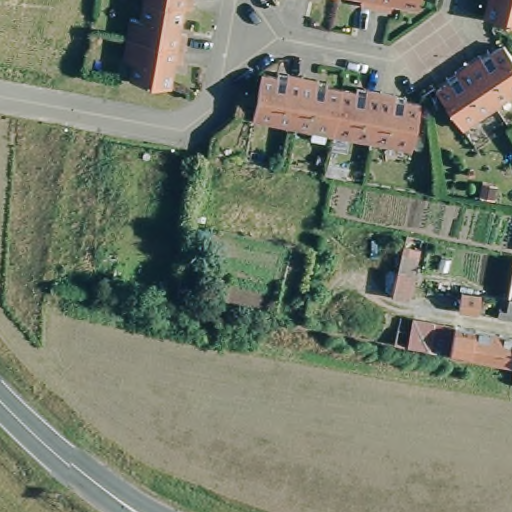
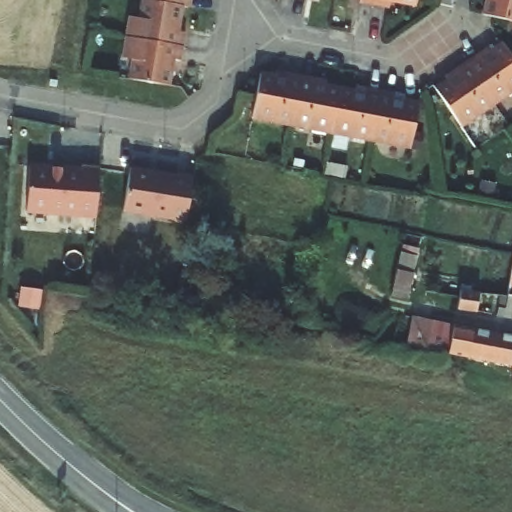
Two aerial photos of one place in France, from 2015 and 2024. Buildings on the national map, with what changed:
unchanged [(157,84),(129,79),(133,59),(123,58),(126,37),(130,17),(140,19),(143,0),(191,0),(189,8),(182,7),(180,20),(178,31),(186,33),(183,47),(181,61),(173,60),(171,71),(169,86),(157,84)]
unchanged [(373,5),(359,2),(359,0),(389,0),(388,7),(373,5)]
unchanged [(400,2),(389,0),(415,0),(414,4),(400,2)]
unchanged [(493,17),(484,15),(487,0),(512,0),(512,22),(493,17)]
unchanged [(448,80),(445,76),(454,70),(466,62),(479,53),(487,48),(489,52),(502,43),(512,58),(512,92),(494,104),(461,126),(436,89),(448,80)]
unchanged [(276,71),(286,73),(301,76),(316,78),(326,80),(325,85),(339,88),(354,91),(356,86),(365,88),(380,90),(394,93),(404,95),(404,100),(419,103),(410,148),(252,118),(261,73),(276,76),(276,71)]
new [(28,163),(79,167),(79,165),(98,169),(94,214),(24,209),(28,163)]
unchanged [(338,165),(336,175),(324,173),(326,163),(338,165)]
new [(128,167),(174,174),(175,173),(191,176),(183,219),(121,208),(128,167)]
unchanged [(417,253),(413,273),(414,273),(408,299),(391,295),(401,249),(417,253)]
unchanged [(496,317),(500,295),(507,295),(512,266),(512,320),(496,317)]
new [(21,290),(39,293),(36,311),(18,308),(21,290)]
unchanged [(479,293),(477,312),(458,309),(460,290),(479,293)]
unchanged [(449,353),(429,350),(407,345),(395,343),(398,328),(409,331),(412,317),(434,321),(454,325),(474,329),(512,336),(512,365),(469,357),(449,353)]

